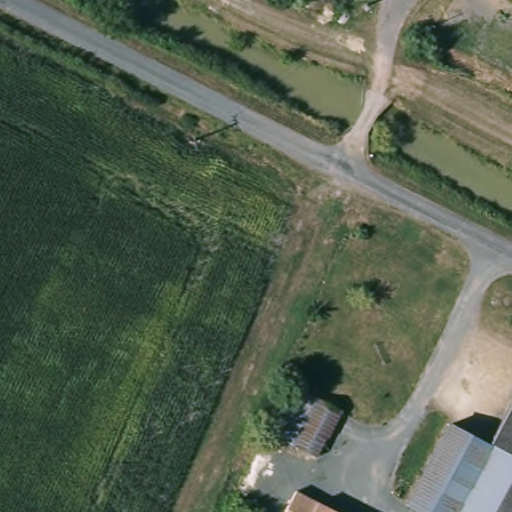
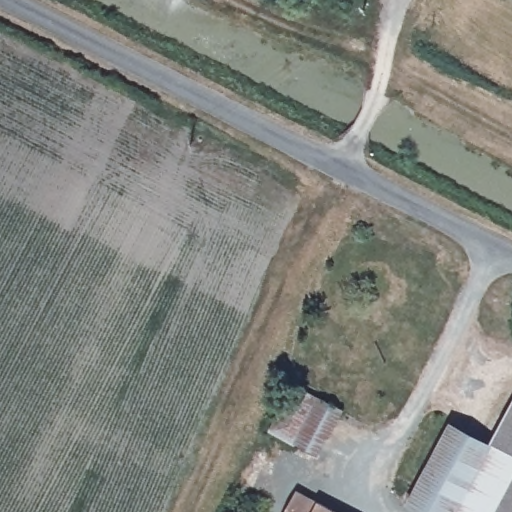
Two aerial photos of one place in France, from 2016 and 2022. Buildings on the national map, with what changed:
unchanged [(273,432),(295,387),(345,413),(320,457),(273,432)]
unchanged [(450,430),(485,445),(506,395),(512,397),(512,512),(428,512),(422,510),(417,507),(450,430)]
unchanged [(320,503),(337,512),(262,512),(278,482),(320,503)]

